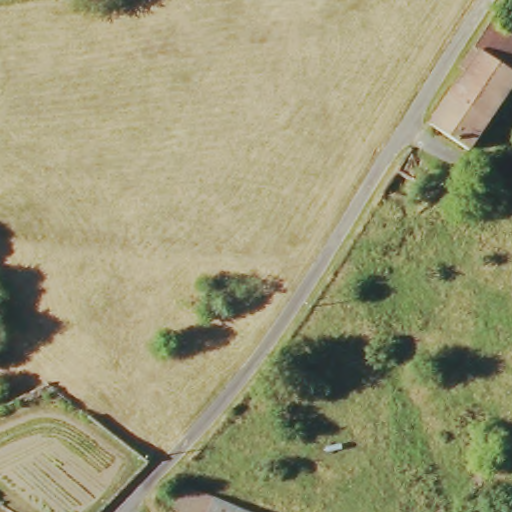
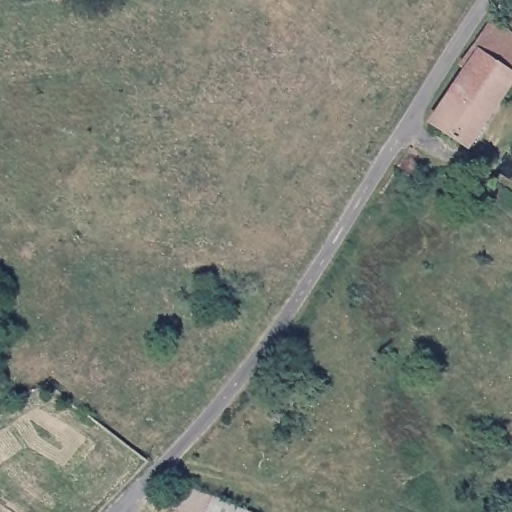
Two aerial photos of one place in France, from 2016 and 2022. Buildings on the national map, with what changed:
unchanged [(512,30),(512,81),(469,144),(432,117),(477,47),(470,44),(489,15),(512,30)]
unchanged [(178,512),(175,510),(184,485),(247,512),(178,512)]

